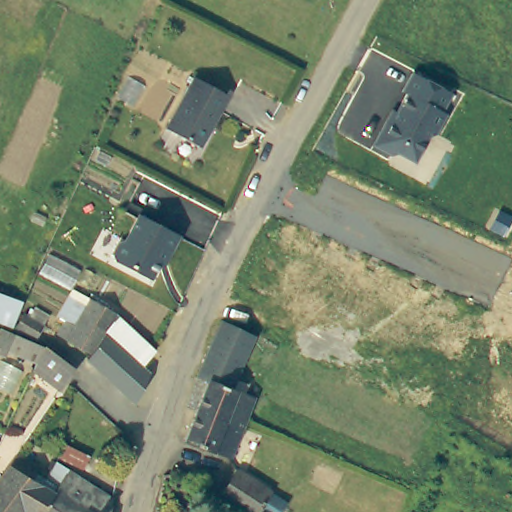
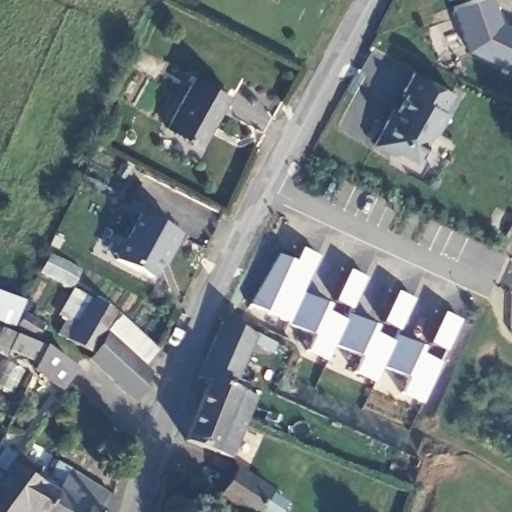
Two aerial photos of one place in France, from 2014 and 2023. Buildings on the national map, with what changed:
unchanged [(495,0),(503,22),(512,26),(512,70),(469,52),(454,6),(473,0),(495,0)]
unchanged [(205,143),(171,127),(195,74),(231,91),(205,143)]
unchanged [(398,94),(408,76),(447,96),(438,114),(443,116),(431,138),(425,138),(412,164),(393,155),(388,157),(369,148),(383,123),(388,112),(393,115),(403,96),(398,94)]
unchanged [(174,256),(167,253),(156,275),(122,257),(120,251),(127,238),(133,236),(146,210),(187,231),(174,256)]
new [(304,292),(333,305),(330,311),(345,319),(348,312),(380,327),(377,334),(392,340),(394,334),(426,347),(422,355),(440,362),(422,403),(402,393),(409,377),(384,367),(376,382),(357,373),(363,357),(337,345),(328,360),(308,350),(314,335),(248,304),(276,253),(293,262),(300,246),(321,258),(304,292)]
unchanged [(0,319),(0,291),(19,302),(7,323),(0,319)]
unchanged [(81,308),(90,294),(115,309),(106,323),(103,328),(148,368),(135,397),(86,354),(90,350),(56,330),(64,317),(73,322),(79,311),(81,308)]
unchanged [(18,329),(25,317),(42,327),(35,338),(18,329)]
unchanged [(233,384),(210,375),(198,370),(222,318),(256,334),(237,374),(233,384)]
unchanged [(61,361),(73,370),(58,392),(31,374),(33,368),(8,352),(16,336),(42,350),(55,358),(61,361)]
unchanged [(255,392),(247,411),(242,421),(197,404),(210,375),(233,384),(237,374),(246,378),(243,388),(255,392)]
unchanged [(184,435),(197,404),(242,421),(229,452),(221,449),(184,435)]
unchanged [(24,507),(23,506),(19,512),(0,512),(0,469),(8,459),(17,449),(38,463),(31,473),(31,474),(53,488),(58,480),(67,465),(111,492),(106,512),(32,512),(24,507)]
unchanged [(257,512),(221,490),(223,487),(206,476),(217,457),(234,468),(236,464),(272,486),(257,512)]

